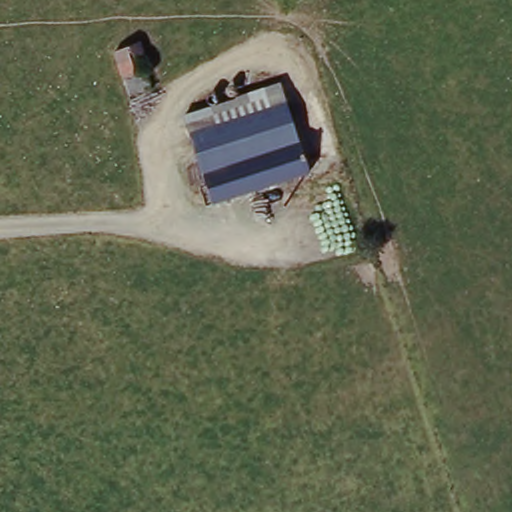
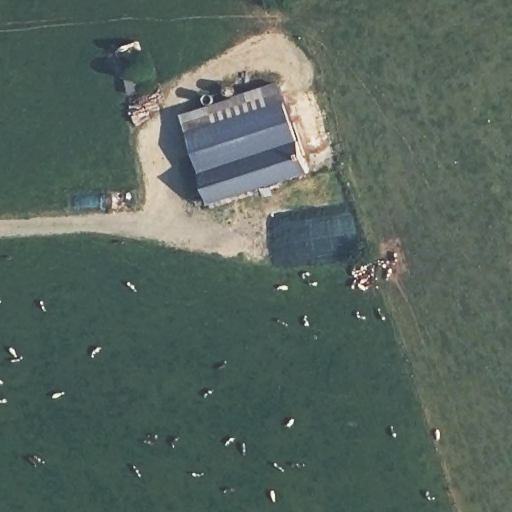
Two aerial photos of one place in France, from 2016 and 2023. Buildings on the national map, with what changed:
unchanged [(129,84),(126,85),(117,58),(145,48),(153,75),(149,76),(155,92),(135,99),(129,84)]
unchanged [(192,117),(286,87),(305,146),(314,175),(220,205),(211,175),(192,117)]

